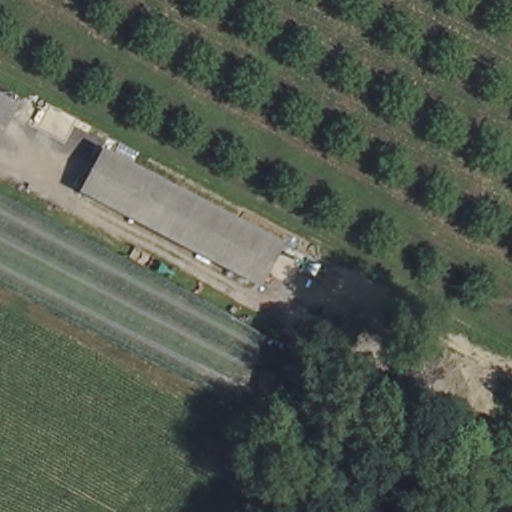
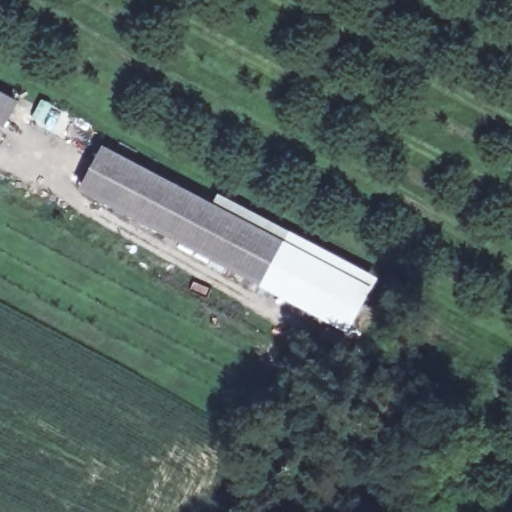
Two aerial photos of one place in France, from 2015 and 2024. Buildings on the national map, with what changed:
unchanged [(0,142),(0,104),(17,113),(0,142)]
new [(280,248),(100,151),(103,144),(215,203),(220,194),(378,278),(348,334),(257,288),(280,248)]
unchanged [(257,288),(78,193),(100,151),(280,248),(257,288)]

